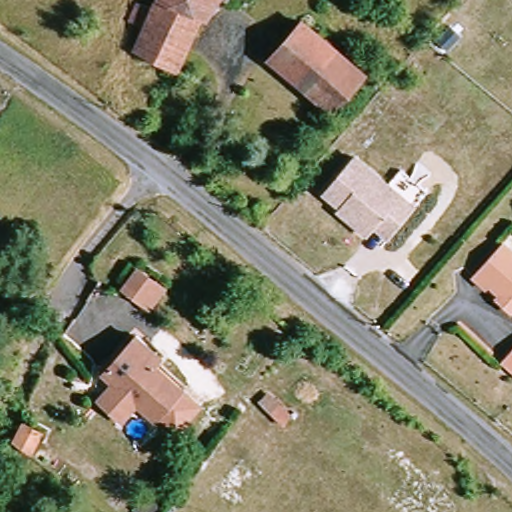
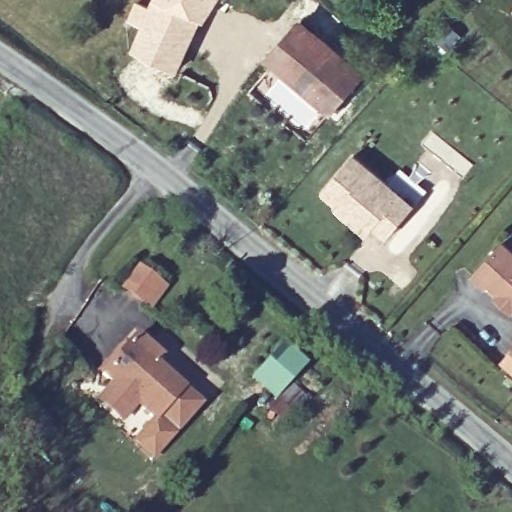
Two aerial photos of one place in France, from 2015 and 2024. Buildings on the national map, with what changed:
unchanged [(154,0),(220,0),(208,21),(201,17),(174,71),(133,51),(143,30),(128,23),(137,4),(150,10),(154,0)]
unchanged [(334,112),(273,62),(305,24),(367,74),(334,112)]
unchanged [(343,211),(346,208),(328,193),(358,157),(393,185),(406,170),(431,191),(393,239),(380,227),(373,236),(343,211)]
unchanged [(512,308),(487,285),(485,287),(474,277),(503,244),(512,252),(512,308)]
unchanged [(169,287),(151,312),(120,290),(139,266),(169,287)]
unchanged [(94,395),(108,380),(100,372),(138,333),(168,360),(164,368),(191,392),(155,425),(136,407),(123,424),(94,395)]
new [(291,411),(281,422),(266,407),(274,399),(250,377),(282,342),(306,365),(276,397),(291,411)]
unchanged [(512,362),(512,369),(509,366),(512,362)]

